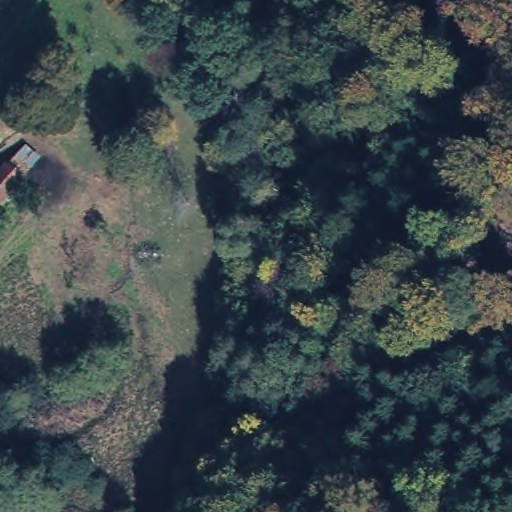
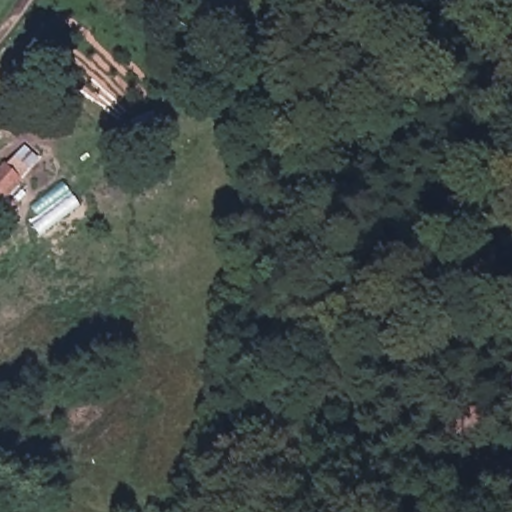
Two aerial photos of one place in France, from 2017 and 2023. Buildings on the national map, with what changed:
unchanged [(0,200),(0,173),(6,169),(20,193),(0,200)]

